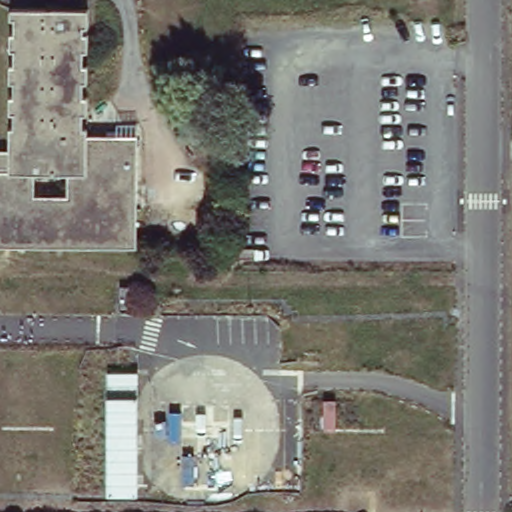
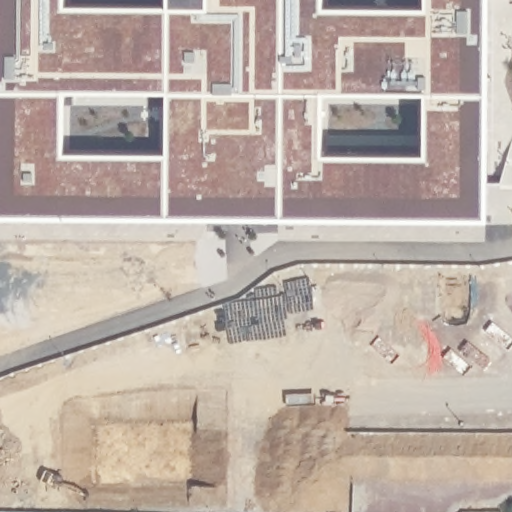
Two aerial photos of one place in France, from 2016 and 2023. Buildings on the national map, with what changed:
new [(481,240),(0,240),(0,0),(481,0),(481,240)]
demolished [(9,171),(9,151),(9,128),(14,127),(14,114),(9,114),(9,96),(14,96),(15,82),(10,82),(10,65),(15,65),(15,51),(10,50),(10,33),(15,33),(15,19),(10,19),(10,8),(89,10),(88,27),(84,27),(84,33),(88,33),(88,52),(83,52),(83,65),(88,65),(88,83),(83,83),(82,97),(87,97),(87,115),(82,115),(82,128),(87,128),(87,136),(137,136),(136,250),(0,248),(0,171),(9,171)]

